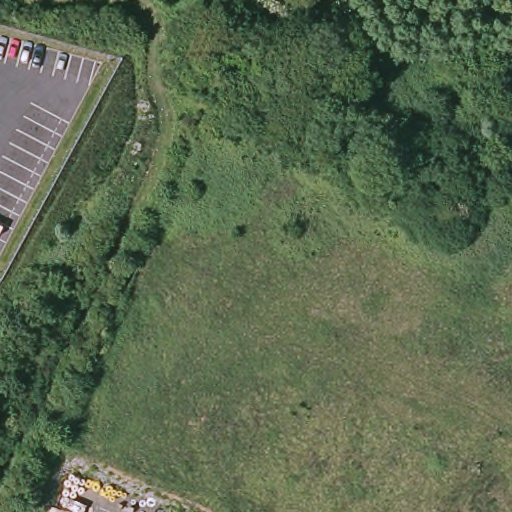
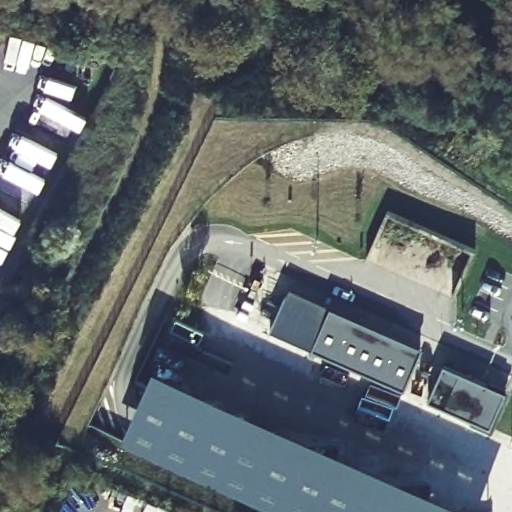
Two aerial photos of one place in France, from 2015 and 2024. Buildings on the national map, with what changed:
new [(269,331),(289,289),(424,348),(421,354),(327,314),(311,350),(269,331)]
new [(421,354),(404,391),(311,350),(327,314),(421,354)]
new [(507,393),(491,429),(428,401),(444,364),(507,393)]
new [(154,369),(477,512),(284,512),(121,442),(154,369)]
new [(491,429),(507,393),(488,384),(489,381),(512,391),(493,434),(469,424),(472,421),(491,429)]

